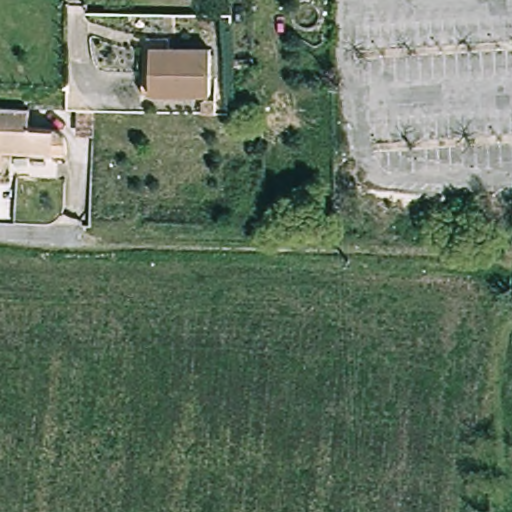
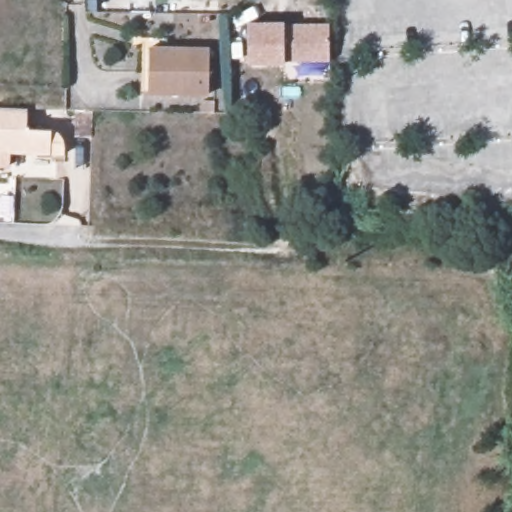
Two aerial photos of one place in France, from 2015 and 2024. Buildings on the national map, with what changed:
new [(330,23),(330,62),(285,64),(249,65),(248,22),(285,22),(330,23)]
unchanged [(134,67),(149,67),(149,46),(208,45),(208,90),(149,92),(134,92),(134,67)]
unchanged [(31,126),(50,127),(49,158),(0,155),(0,99),(32,101),(31,126)]

